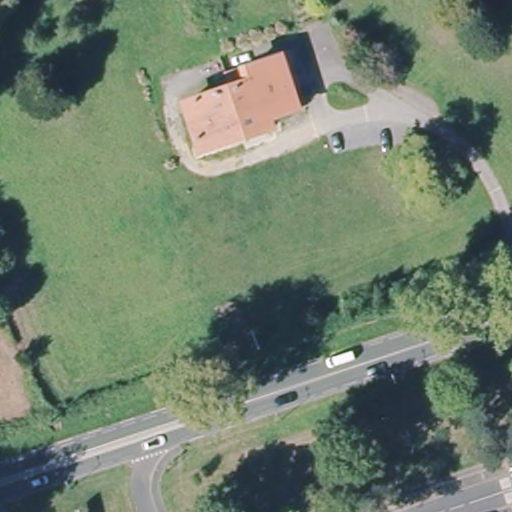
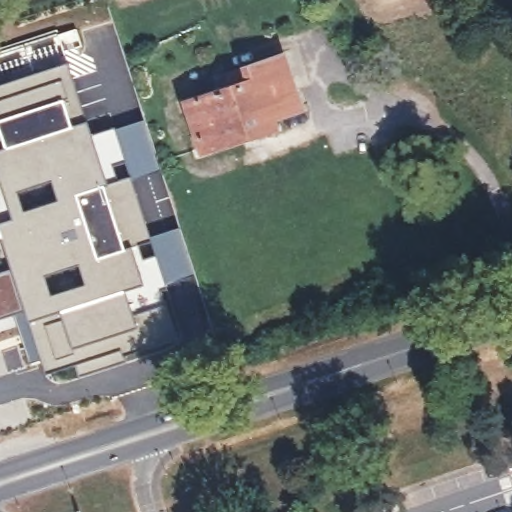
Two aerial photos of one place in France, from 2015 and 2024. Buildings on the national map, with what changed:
unchanged [(272,117),(275,126),(204,149),(189,102),(231,88),(227,76),(282,58),(299,109),(272,117)]
new [(65,62),(83,114),(70,118),(72,125),(39,137),(0,148),(0,84),(65,62)]
new [(144,117),(160,170),(132,178),(132,176),(128,177),(127,175),(113,127),(144,117)]
new [(5,329),(0,331),(0,148),(39,137),(72,125),(86,120),(91,133),(113,127),(127,175),(75,193),(97,257),(149,240),(163,284),(147,289),(146,286),(125,290),(136,328),(114,335),(118,346),(44,372),(38,359),(31,362),(25,345),(32,342),(22,312),(0,320),(5,329)]
new [(127,175),(128,177),(132,176),(132,178),(149,235),(149,240),(97,257),(75,193),(127,175)]
new [(149,235),(179,226),(195,273),(163,284),(149,240),(149,235)]

